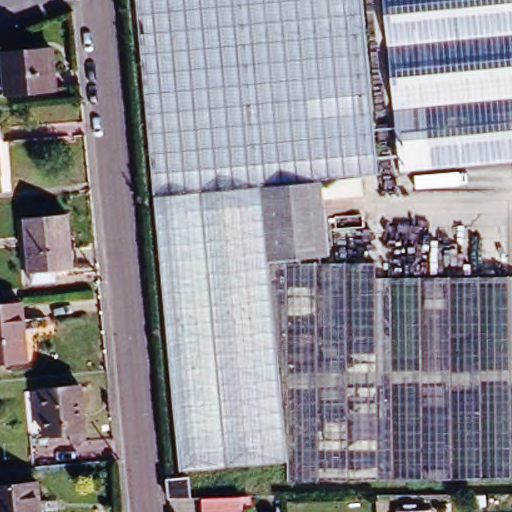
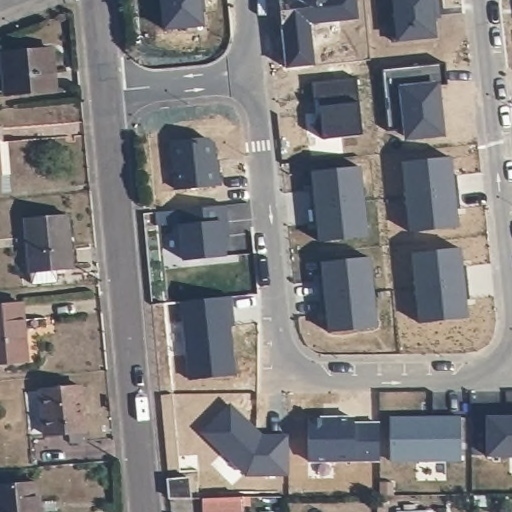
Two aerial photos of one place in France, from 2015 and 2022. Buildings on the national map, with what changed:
demolished [(141,58),(136,0),(364,0),(367,39),(376,160),(355,162),(356,182),(318,185),(152,199),(141,58)]
demolished [(512,164),(396,173),(383,0),(512,0),(512,164)]
unchanged [(3,57),(53,50),(57,92),(7,98),(3,57)]
demolished [(325,264),(296,266),(285,267),(285,280),(286,465),(174,473),(152,199),(318,185),(325,264)]
unchanged [(20,218),(63,214),(67,268),(50,269),(50,275),(42,276),(42,270),(25,272),(20,218)]
demolished [(385,265),(385,280),(512,279),(512,483),(286,486),(286,465),(285,280),(285,267),(296,266),(296,271),(385,265)]
unchanged [(22,304),(27,360),(0,362),(0,306),(22,304)]
unchanged [(37,394),(78,390),(82,434),(41,437),(37,394)]
unchanged [(170,476),(195,475),(197,501),(171,501),(170,476)]
unchanged [(32,488),(34,512),(0,512),(0,491),(32,488)]
unchanged [(208,498),(238,497),(238,509),(208,510),(208,498)]

